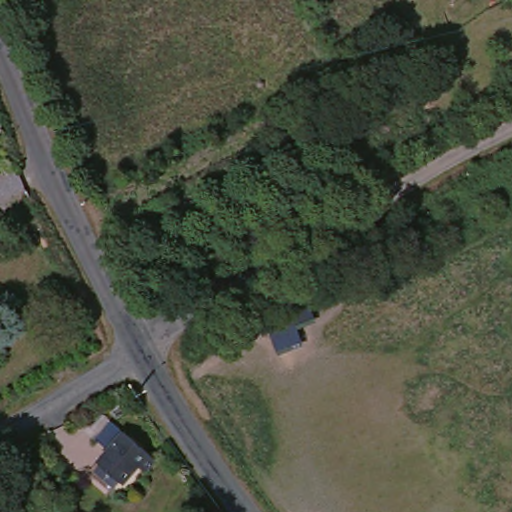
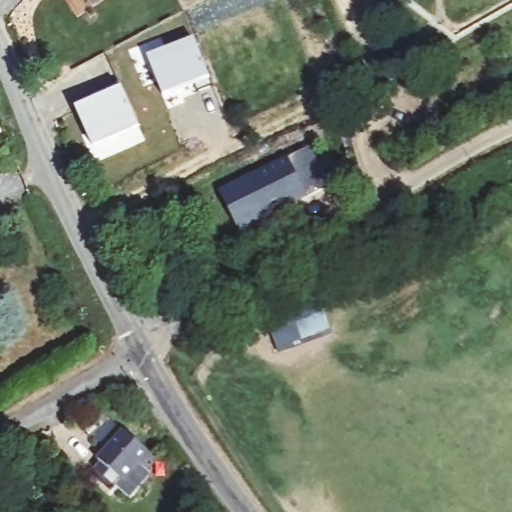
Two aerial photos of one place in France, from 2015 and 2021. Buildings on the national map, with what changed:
new [(194,38),(213,84),(197,90),(194,82),(164,94),(149,55),(194,38)]
new [(106,92),(103,85),(119,78),(138,123),(93,143),(76,106),(106,92)]
new [(310,143),(333,180),(306,193),(286,155),(310,143)]
new [(286,155),(306,193),(245,223),(238,227),(218,188),(226,184),(286,155)]
new [(287,309),(298,332),(268,347),(256,325),(287,309)]
unchanged [(94,462),(123,434),(154,464),(124,491),(94,462)]

